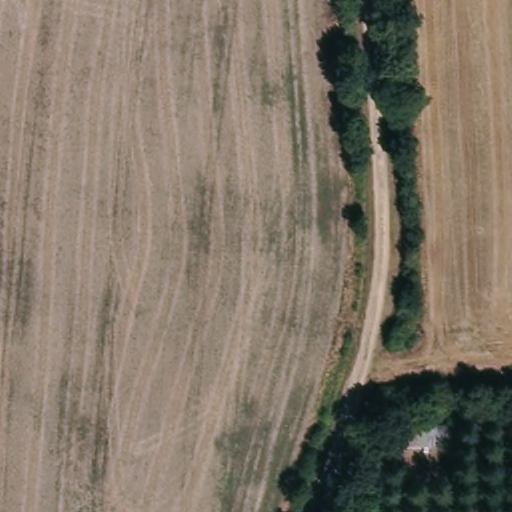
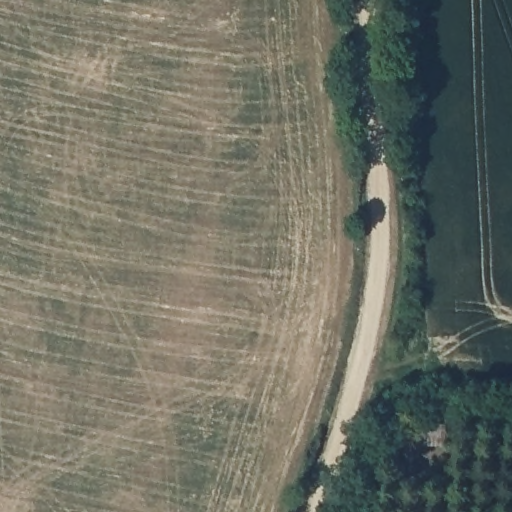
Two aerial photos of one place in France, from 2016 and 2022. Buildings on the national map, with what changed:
unchanged [(427,434),(428,422),(450,423),(450,449),(410,448),(410,433),(427,434)]

